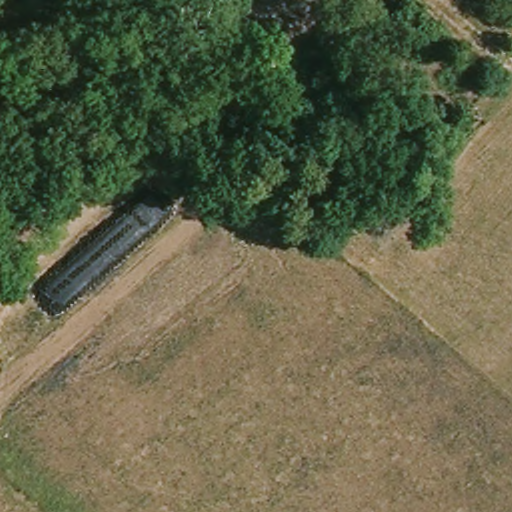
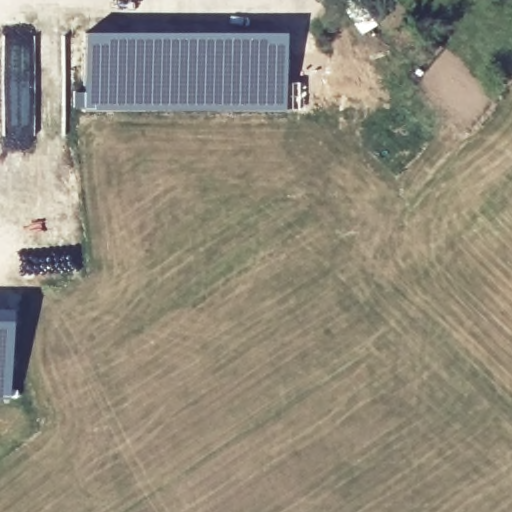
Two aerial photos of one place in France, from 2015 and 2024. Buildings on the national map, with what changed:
new [(87,36),(288,35),(288,110),(87,112),(87,36)]
new [(9,310),(6,401),(0,400),(0,310),(9,310)]

